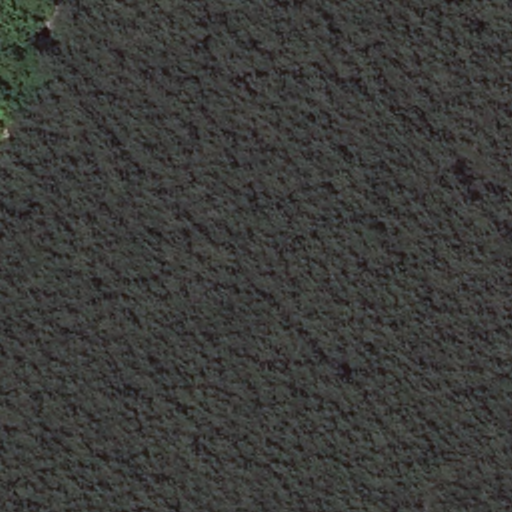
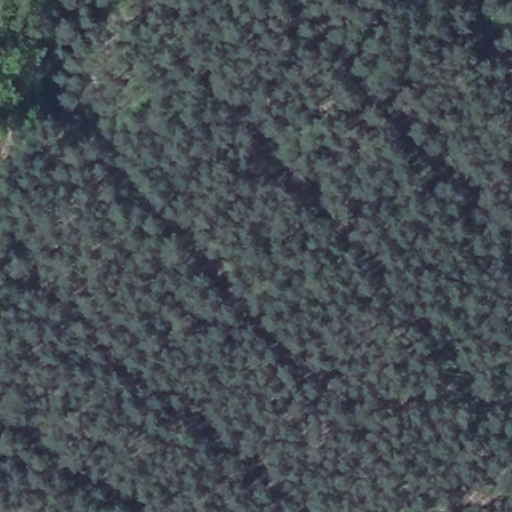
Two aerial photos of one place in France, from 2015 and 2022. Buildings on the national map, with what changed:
[]

